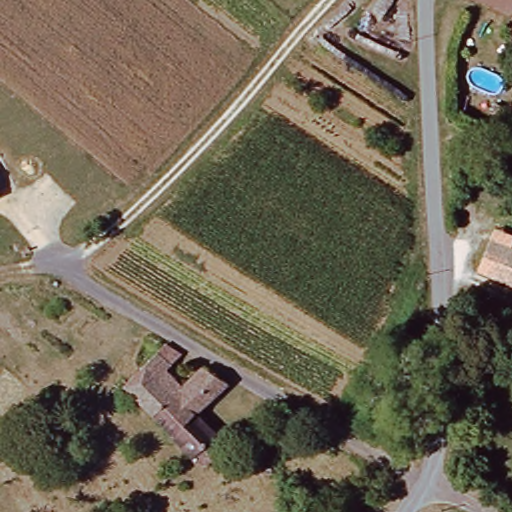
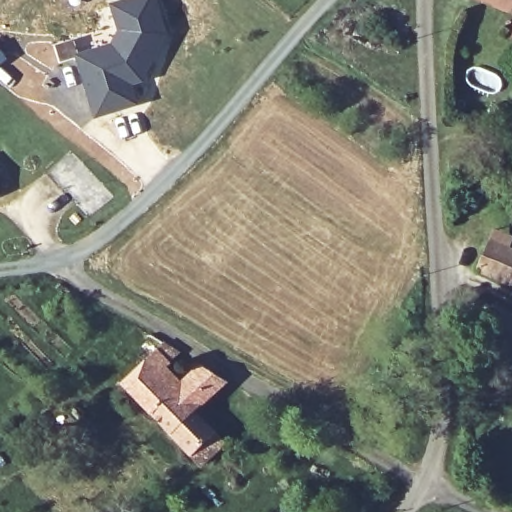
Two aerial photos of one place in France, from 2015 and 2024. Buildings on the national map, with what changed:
new [(77,52),(109,43),(117,31),(108,3),(118,0),(159,0),(171,37),(164,53),(161,52),(146,83),(136,87),(141,103),(94,119),(75,58),(59,63),(54,44),(73,39),(77,52)]
unchanged [(512,0),(512,1),(502,23),(460,0),(512,0)]
unchanged [(510,35),(512,32),(512,36),(510,35)]
new [(0,66),(0,50),(7,60),(0,66)]
unchanged [(477,265),(488,235),(512,245),(512,279),(477,265)]
unchanged [(467,285),(512,299),(512,306),(506,321),(460,306),(467,285)]
unchanged [(124,381),(155,353),(149,346),(166,338),(186,351),(170,366),(189,381),(157,410),(124,381)]
unchanged [(218,427),(210,437),(219,445),(207,457),(157,410),(189,381),(194,377),(209,364),(234,380),(218,394),(202,408),(218,427)]

